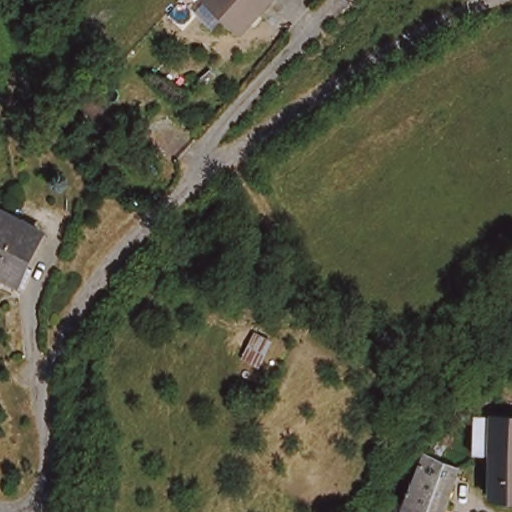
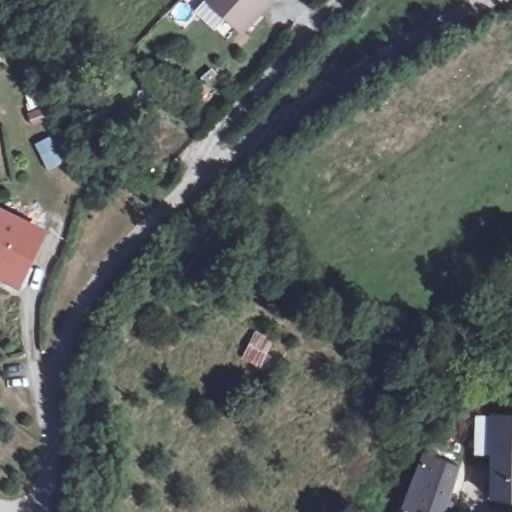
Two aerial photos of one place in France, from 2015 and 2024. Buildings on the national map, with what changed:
unchanged [(273,7),(268,2),(245,26),(219,0),(278,0),(273,7)]
unchanged [(45,235),(18,285),(0,275),(0,210),(45,235)]
unchanged [(294,370),(278,362),(290,337),(306,346),(294,370)]
unchanged [(489,388),(494,404),(512,404),(512,502),(494,502),(496,462),(476,461),(477,422),(469,403),(468,397),(489,388)]
unchanged [(469,403),(477,422),(459,428),(446,466),(424,457),(453,406),(469,403)]
unchanged [(447,466),(462,472),(449,512),(408,512),(424,457),(446,466),(447,466)]

